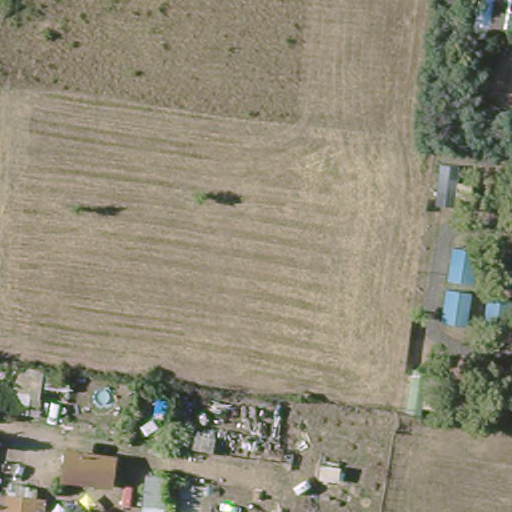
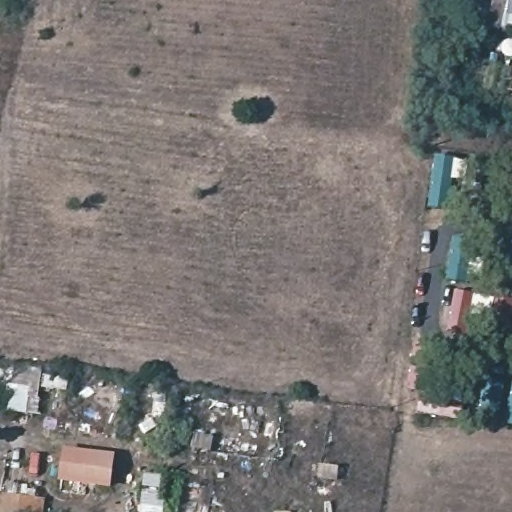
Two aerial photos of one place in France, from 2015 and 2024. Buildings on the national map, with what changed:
unchanged [(38,401),(30,400),(28,414),(7,412),(13,365),(42,369),(38,401)]
unchanged [(113,454),(110,481),(65,477),(68,449),(113,454)]
unchanged [(38,512),(3,512),(5,490),(40,493),(38,512)]
unchanged [(163,512),(136,512),(137,498),(165,501),(163,512)]

